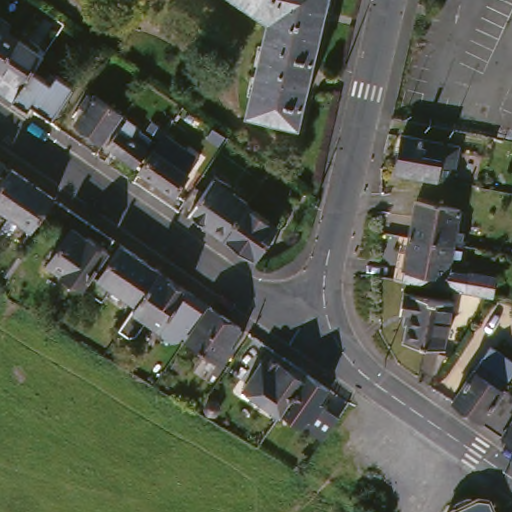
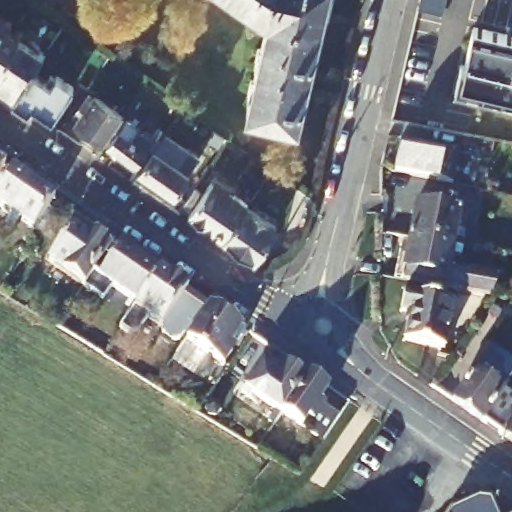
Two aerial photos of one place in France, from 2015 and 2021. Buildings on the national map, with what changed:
unchanged [(336,0),(320,71),(323,71),(319,85),(318,85),(309,121),(258,110),(279,16),(255,0),(336,0)]
new [(447,0),(444,13),(419,7),(421,0),(447,0)]
unchanged [(0,67),(0,16),(6,21),(11,14),(22,22),(18,28),(30,36),(6,71),(5,70),(0,67)]
new [(458,90),(462,65),(467,64),(474,38),(475,29),(512,38),(512,103),(458,90)]
unchanged [(0,77),(5,70),(6,71),(30,36),(54,53),(42,69),(23,96),(0,81),(0,77)]
unchanged [(42,69),(56,79),(61,72),(66,75),(68,73),(80,82),(59,114),(43,103),(39,107),(23,96),(42,69)]
unchanged [(71,117),(81,103),(77,100),(84,89),(89,92),(90,89),(119,109),(100,136),(71,117)]
unchanged [(122,114),(136,124),(133,128),(138,131),(134,137),(144,144),(133,161),(115,149),(113,152),(106,147),(109,144),(104,140),(122,114)]
unchanged [(161,129),(178,140),(194,154),(172,189),(136,165),(161,129)]
unchanged [(449,156),(451,156),(450,159),(459,161),(456,181),(404,172),(405,169),(401,168),(404,155),(407,156),(411,135),(434,139),(432,149),(449,152),(449,156)]
unchanged [(0,202),(0,163),(4,157),(27,172),(4,205),(0,202)]
unchanged [(49,188),(29,217),(14,207),(13,210),(4,205),(27,172),(49,188)]
unchanged [(222,233),(219,238),(204,226),(206,223),(192,212),(215,178),(228,186),(229,185),(240,194),(242,191),(245,194),(244,196),(259,207),(258,209),(235,242),(222,233)]
unchanged [(421,201),(467,209),(461,243),(415,235),(421,201)]
unchanged [(258,209),(288,230),(265,263),(235,242),(258,209)]
unchanged [(52,262),(76,226),(90,235),(91,233),(112,247),(86,285),(52,262)]
unchanged [(456,271),(474,274),(471,291),(408,279),(414,237),(415,235),(461,243),(456,271)]
unchanged [(116,286),(104,304),(83,290),(86,285),(112,247),(113,246),(119,251),(124,243),(163,270),(140,303),(116,286)]
unchanged [(172,317),(165,325),(149,314),(146,319),(137,313),(140,308),(138,306),(140,303),(163,270),(214,305),(194,332),(172,317)]
unchanged [(419,315),(411,314),(414,293),(456,302),(449,348),(415,342),(419,315)]
unchanged [(190,337),(194,332),(214,305),(244,326),(232,345),(238,349),(228,363),(190,337)]
unchanged [(512,354),(512,443),(456,406),(492,343),(512,354)]
unchanged [(287,417),(281,413),(285,408),(254,387),(280,348),(295,358),(291,364),(314,379),(292,410),(287,417)]
unchanged [(308,421),(292,410),(314,379),(318,373),(337,387),(327,400),(349,416),(339,432),(333,440),(308,421)]
unchanged [(494,495),(499,512),(455,512),(494,495)]

